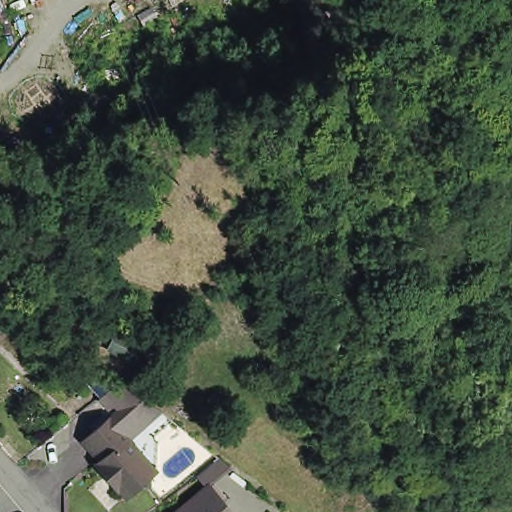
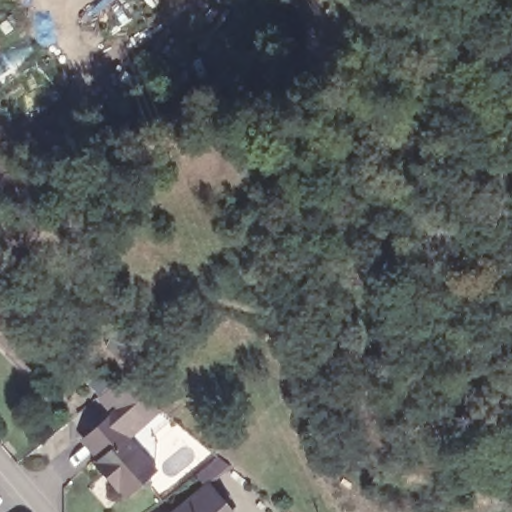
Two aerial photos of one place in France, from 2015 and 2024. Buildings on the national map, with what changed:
unchanged [(118,486),(115,488),(93,462),(103,453),(85,432),(110,412),(128,433),(125,436),(150,463),(147,483),(136,482),(124,493),(118,486)]
unchanged [(206,487),(227,512),(181,512),(178,509),(206,487)]

